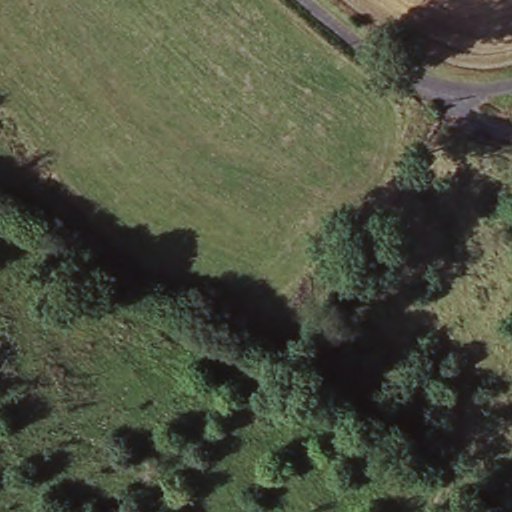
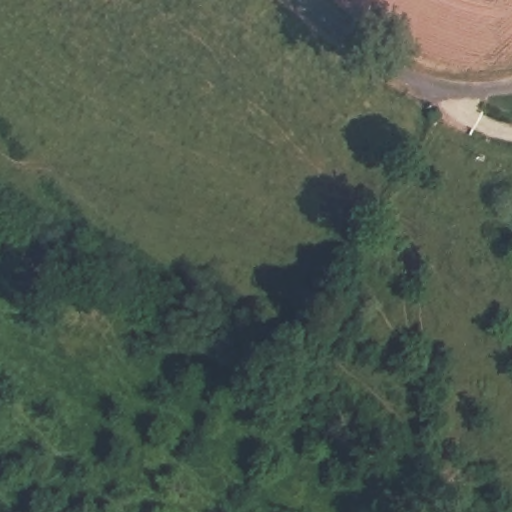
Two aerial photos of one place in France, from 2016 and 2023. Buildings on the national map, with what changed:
[]

